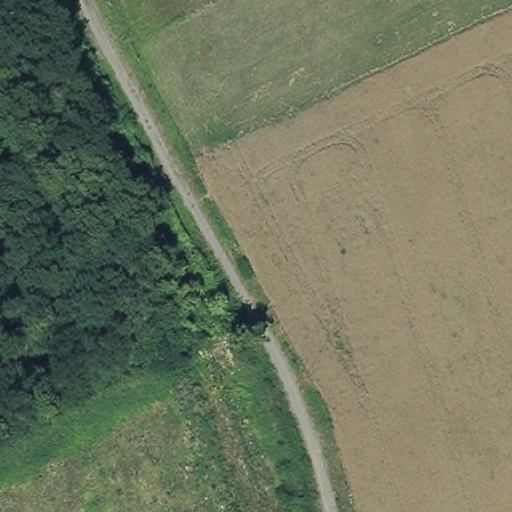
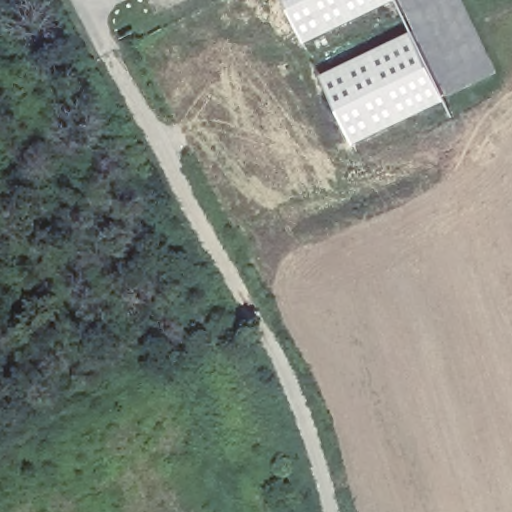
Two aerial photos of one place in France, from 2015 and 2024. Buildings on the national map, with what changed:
new [(305,41),(286,0),(390,0),(305,41)]
new [(322,74),(413,30),(445,97),(354,142),(322,74)]

